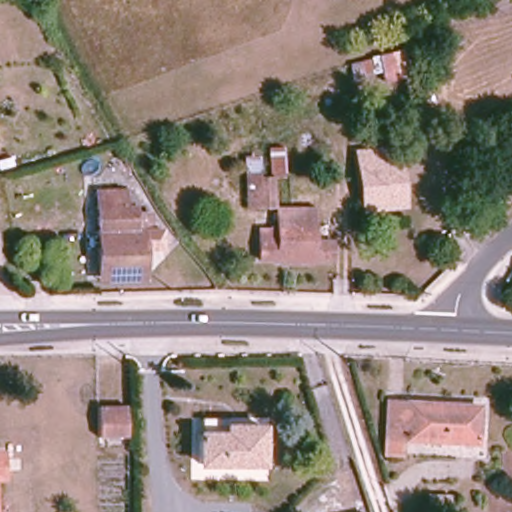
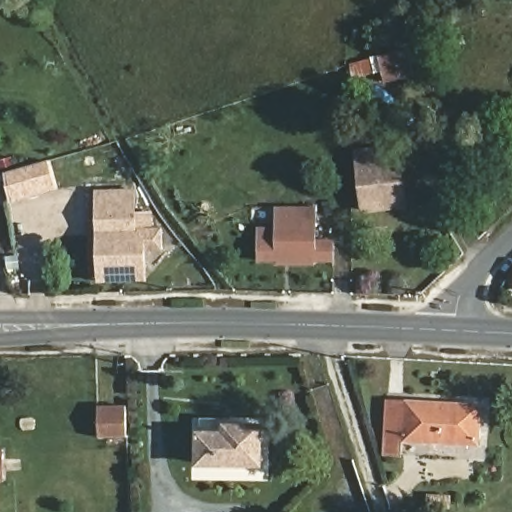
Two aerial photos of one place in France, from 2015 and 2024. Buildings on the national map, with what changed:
unchanged [(372,65),(397,57),(402,85),(390,87),(387,77),(357,85),(355,70),(372,65)]
new [(49,161),(57,189),(10,202),(2,175),(49,161)]
unchanged [(400,161),(405,200),(362,204),(357,167),(400,161)]
unchanged [(152,232),(160,233),(162,252),(144,252),(144,275),(100,276),(96,195),(133,194),(133,205),(133,219),(150,217),(152,232)]
unchanged [(315,244),(333,245),(333,263),(314,262),(314,265),(277,264),(277,262),(259,261),(262,230),(280,230),(280,210),(317,212),(315,244)]
unchanged [(395,455),(384,455),(387,403),(479,408),(477,445),(403,440),(403,456),(395,455)]
unchanged [(128,438),(98,438),(98,407),(127,407),(128,438)]
unchanged [(262,427),(261,465),(199,465),(199,434),(226,435),(226,427),(262,427)]
unchanged [(2,453),(3,480),(0,480),(0,453),(2,453)]
unchanged [(449,498),(449,508),(428,507),(428,497),(449,498)]

